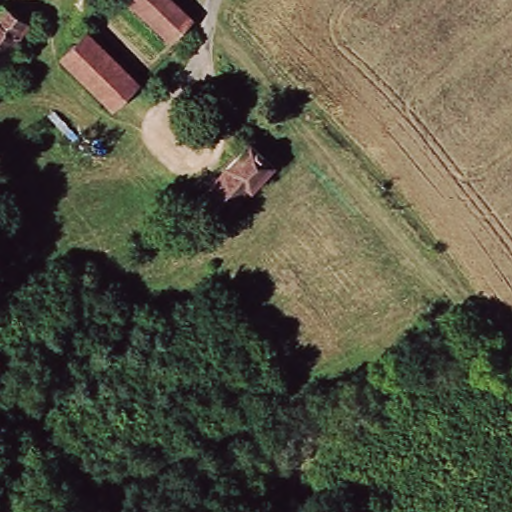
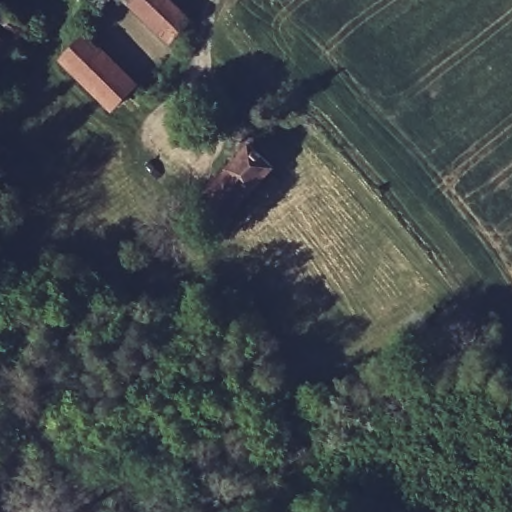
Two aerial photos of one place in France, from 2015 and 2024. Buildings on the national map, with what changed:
unchanged [(175,41),(130,0),(171,0),(194,21),(175,41)]
unchanged [(29,26),(0,69),(0,12),(2,8),(29,26)]
unchanged [(62,63),(85,39),(135,86),(112,110),(62,63)]
unchanged [(206,202),(255,144),(282,169),(271,183),(235,225),(206,202)]

